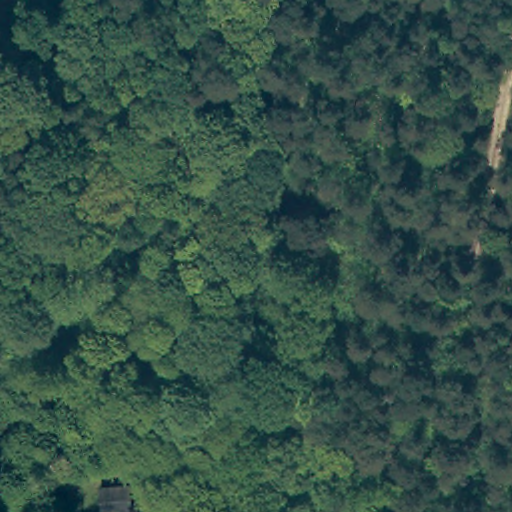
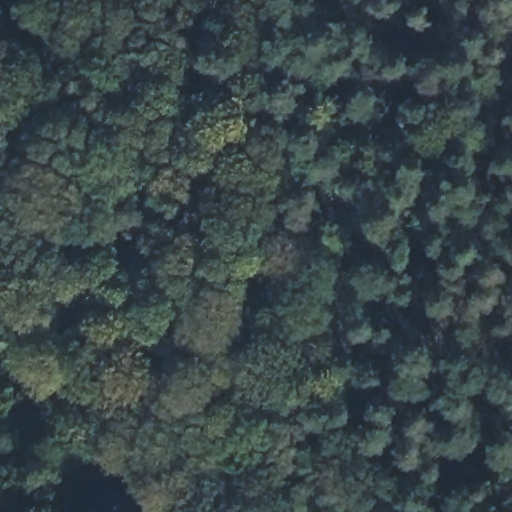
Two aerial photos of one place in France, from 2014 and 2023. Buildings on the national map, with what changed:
unchanged [(125,488),(129,507),(106,511),(103,490),(125,488)]

